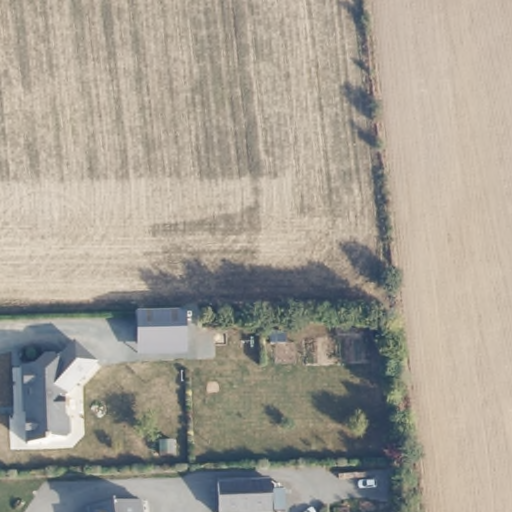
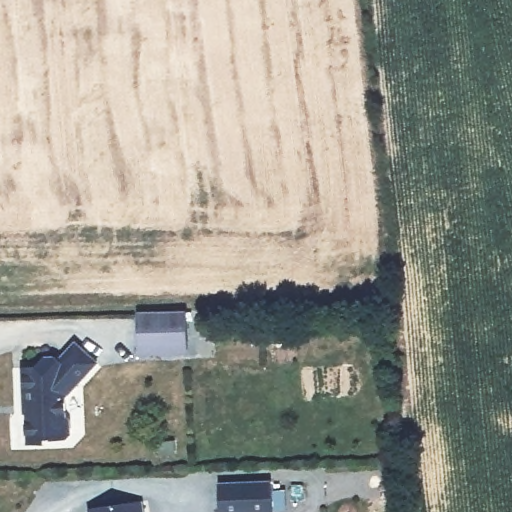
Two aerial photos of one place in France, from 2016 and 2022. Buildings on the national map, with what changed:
unchanged [(134,352),(134,341),(133,308),(167,307),(180,307),(181,340),(181,352),(134,352)]
unchanged [(69,345),(89,366),(58,397),(59,420),(63,422),(63,433),(58,437),(46,437),(46,443),(23,444),(21,410),(26,408),(25,397),(18,397),(16,369),(31,367),(36,367),(37,361),(45,359),(50,358),(56,358),(69,345)]
unchanged [(217,512),(216,482),(268,482),(269,512),(217,512)]
unchanged [(149,512),(94,512),(94,507),(149,506),(149,512)]

